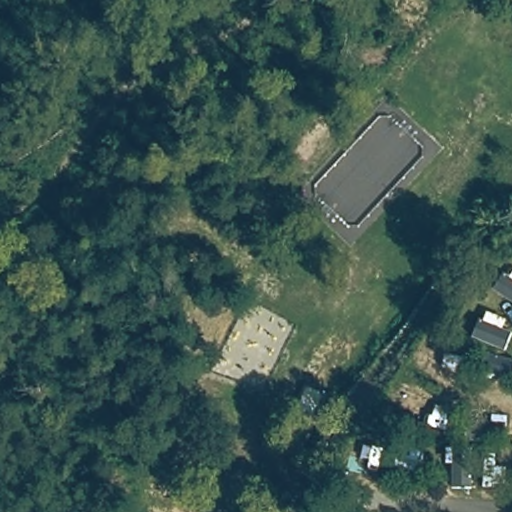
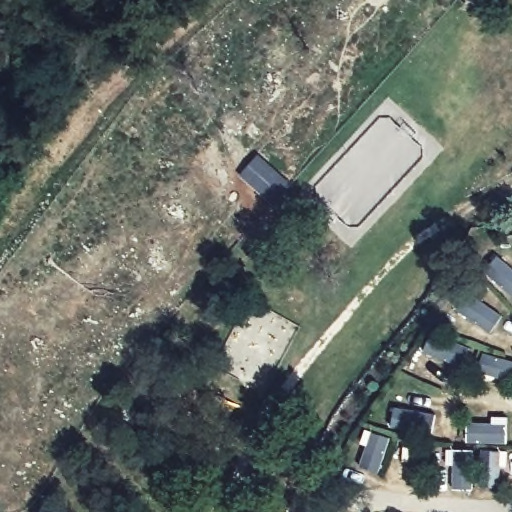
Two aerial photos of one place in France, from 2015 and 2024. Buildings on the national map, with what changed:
new [(291,185),(271,207),(239,177),(258,155),(291,185)]

